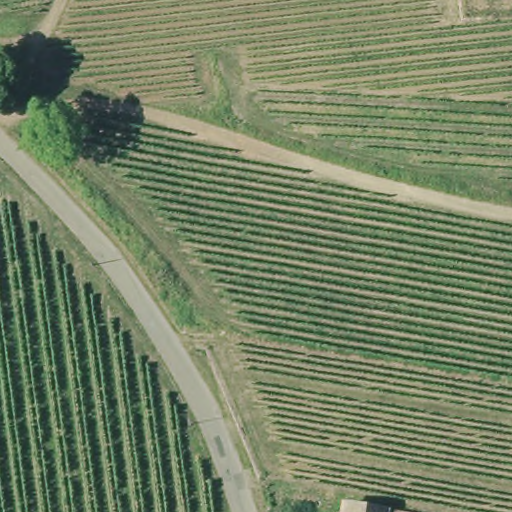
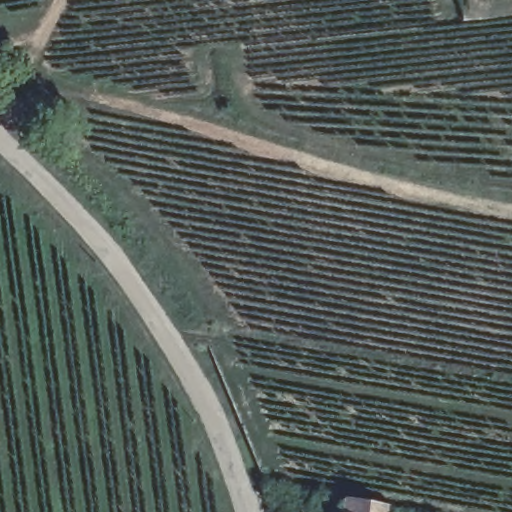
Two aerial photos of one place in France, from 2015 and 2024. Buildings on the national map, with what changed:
unchanged [(390,509),(411,512),(346,512),(347,502),(390,509)]

